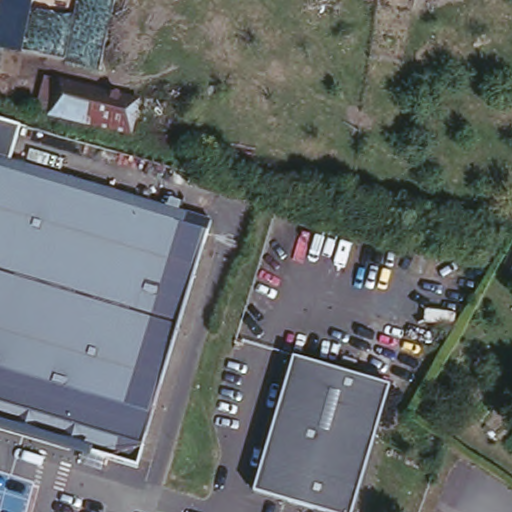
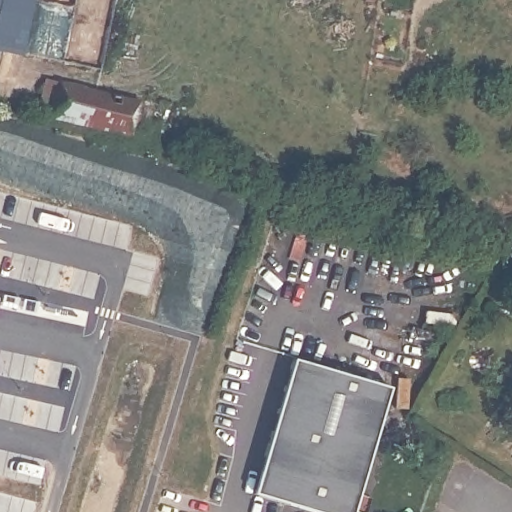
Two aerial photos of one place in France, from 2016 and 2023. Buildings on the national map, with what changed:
unchanged [(0,57),(0,0),(15,0),(4,58),(0,57)]
unchanged [(57,81),(139,101),(130,133),(50,113),(57,81)]
demolished [(22,127),(11,161),(212,222),(140,468),(0,425),(0,121),(22,127)]
unchanged [(512,253),(512,274),(504,271),(512,253)]
unchanged [(251,495),(290,356),(392,386),(354,512),(308,512),(251,495)]

